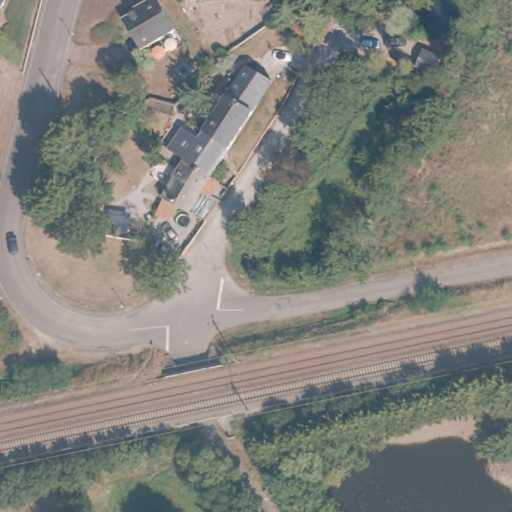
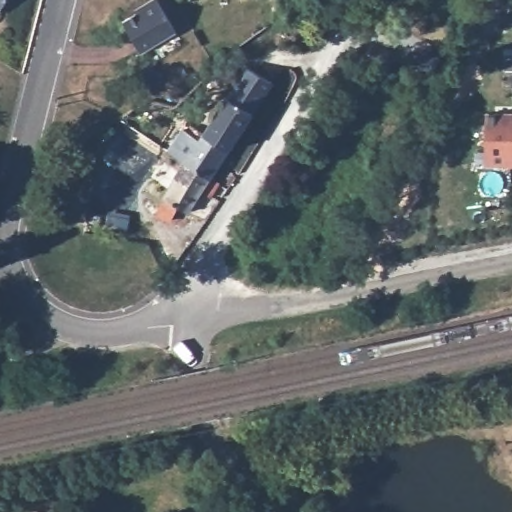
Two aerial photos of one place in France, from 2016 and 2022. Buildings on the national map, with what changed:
unchanged [(1,9),(0,11),(0,0),(7,0),(1,9)]
unchanged [(157,0),(158,0),(177,31),(142,52),(124,20),(157,0)]
unchanged [(205,131),(247,66),(273,82),(211,178),(186,161),(170,150),(185,128),(195,134),(199,128),(205,131)]
unchanged [(172,117),(136,106),(151,99),(177,104),(172,117)]
new [(487,111),(512,112),(512,166),(482,165),(487,111)]
unchanged [(211,178),(189,212),(164,199),(186,161),(211,178)]
unchanged [(512,387),(500,389),(499,380),(512,378),(512,387)]

